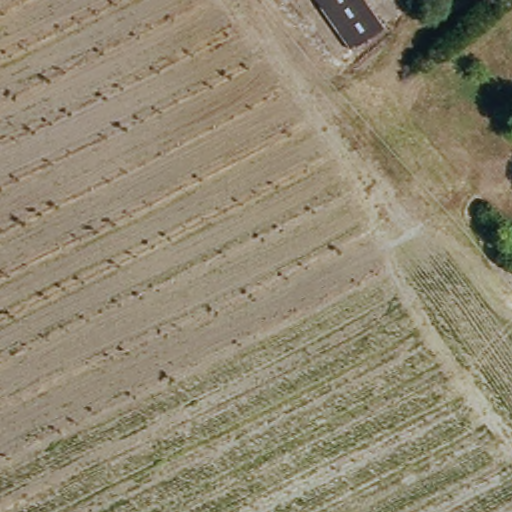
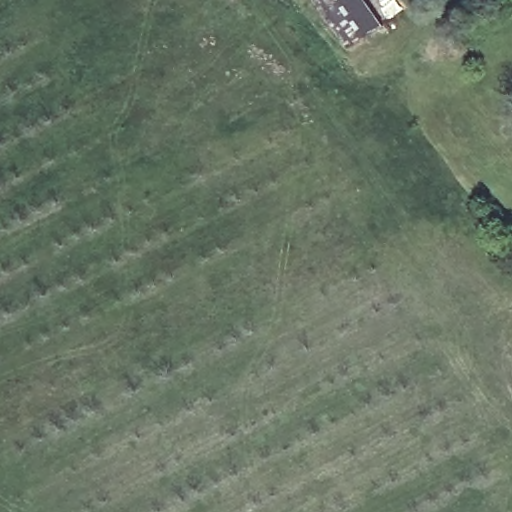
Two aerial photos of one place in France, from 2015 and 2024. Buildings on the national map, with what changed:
unchanged [(389,24),(360,49),(318,0),(369,0),(378,10),(389,24)]

